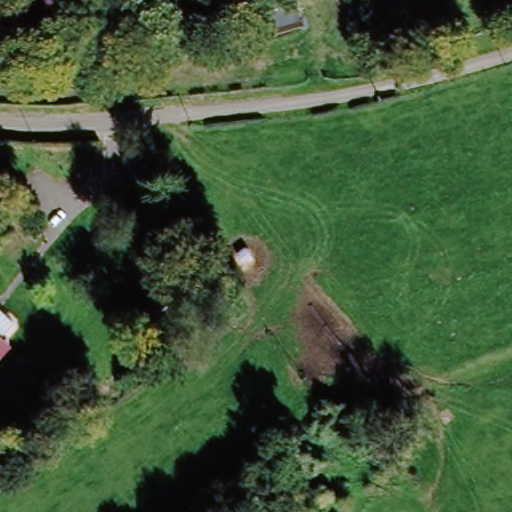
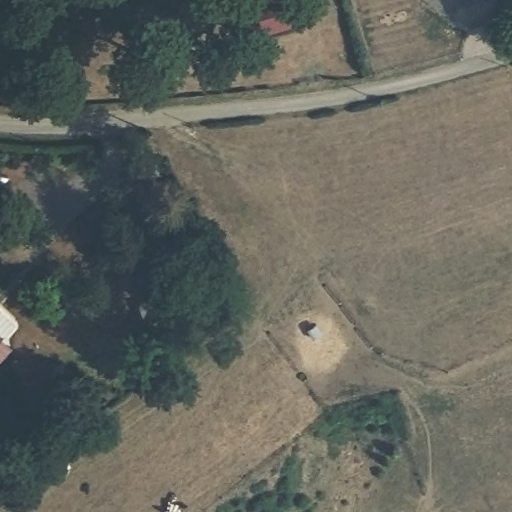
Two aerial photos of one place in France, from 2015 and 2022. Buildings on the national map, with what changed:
unchanged [(231,0),(238,0),(242,11),(226,17),(221,4),(231,0)]
unchanged [(290,4),(297,31),(265,42),(256,15),(290,4)]
unchanged [(19,330),(0,351),(0,312),(19,330)]

